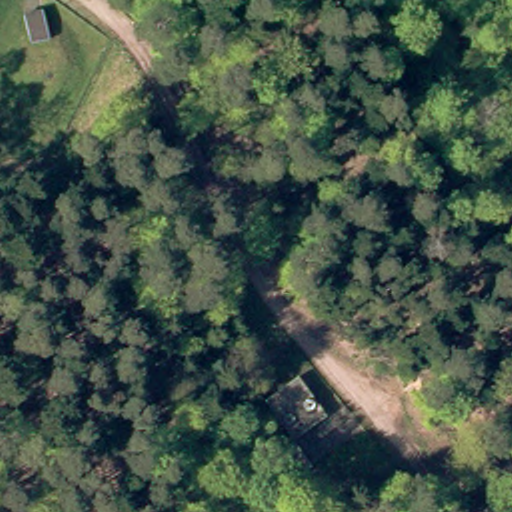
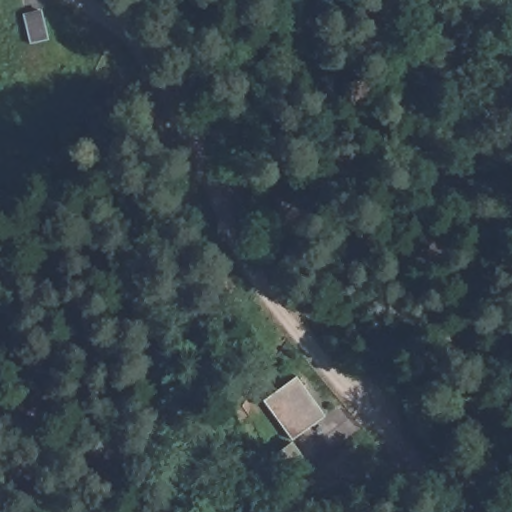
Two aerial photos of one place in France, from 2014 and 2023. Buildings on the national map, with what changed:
unchanged [(325,411),(287,435),(260,396),(293,373),(325,411)]

